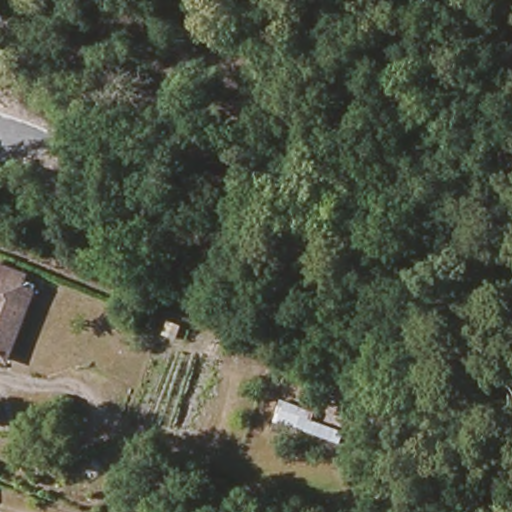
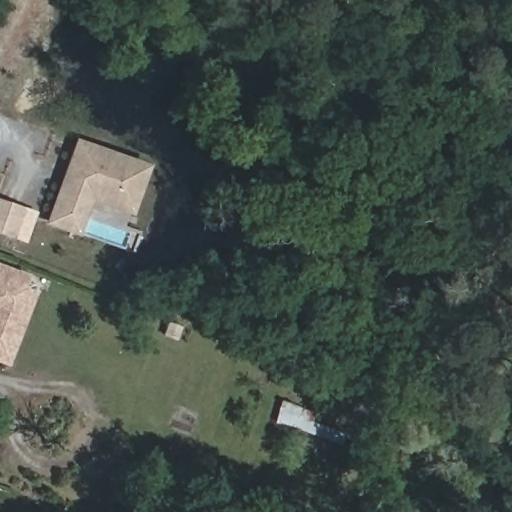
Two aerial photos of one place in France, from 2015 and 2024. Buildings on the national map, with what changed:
new [(80,235),(45,222),(75,138),(150,163),(132,215),(91,201),(80,235)]
new [(19,209),(10,235),(0,232),(0,203),(19,209)]
unchanged [(0,365),(0,274),(22,282),(18,293),(30,298),(20,326),(4,366),(0,365)]
unchanged [(281,401),(315,411),(312,421),(343,433),(338,446),(274,422),(281,401)]
unchanged [(96,484),(89,472),(100,464),(109,475),(96,484)]

